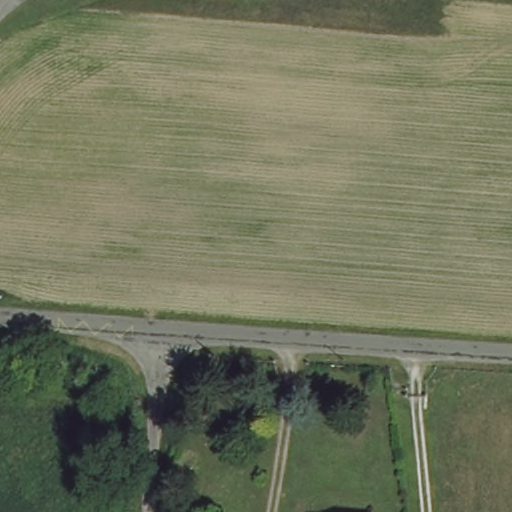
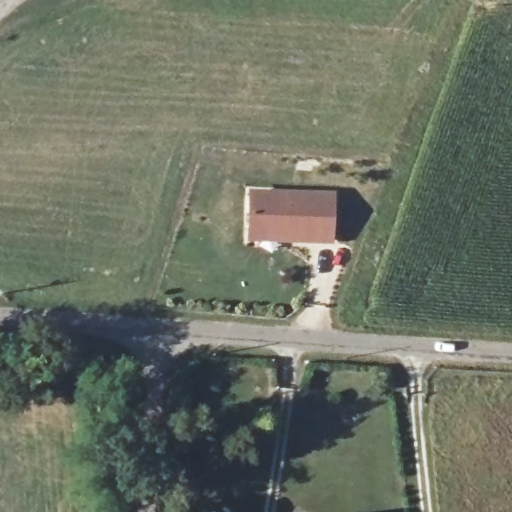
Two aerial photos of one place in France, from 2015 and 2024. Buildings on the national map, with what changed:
new [(247,190),(335,191),(332,245),(245,241),(247,190)]

